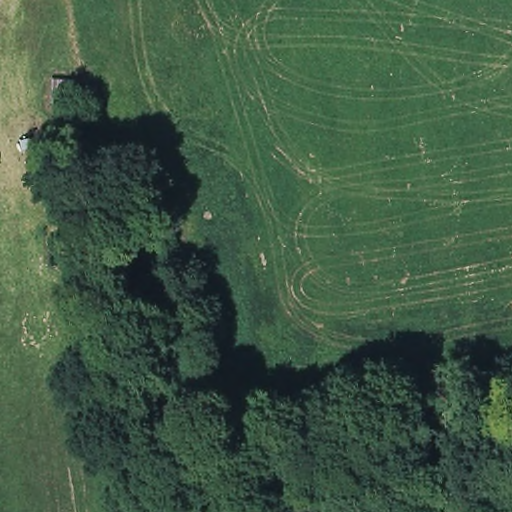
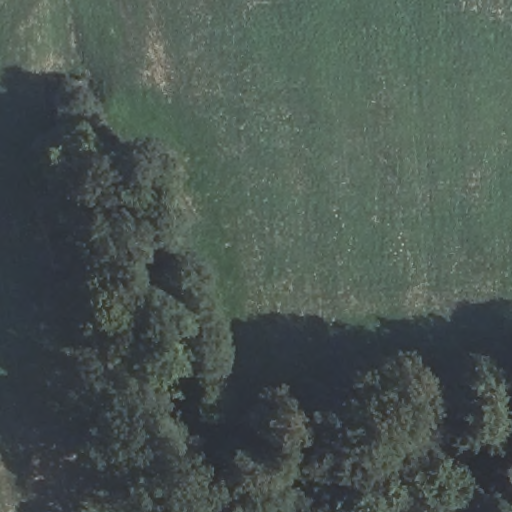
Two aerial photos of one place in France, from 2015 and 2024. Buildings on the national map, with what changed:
unchanged [(45,72),(82,77),(79,105),(47,102),(45,72)]
unchanged [(82,235),(107,225),(112,260),(87,260),(82,235)]
unchanged [(334,461),(330,480),(314,478),(320,459),(334,461)]

